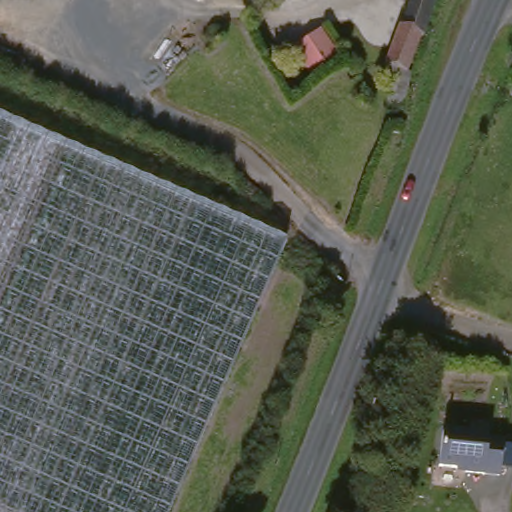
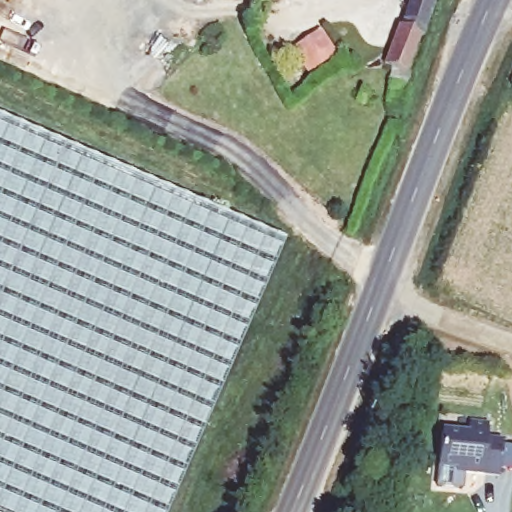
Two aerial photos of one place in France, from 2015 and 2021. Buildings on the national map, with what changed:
unchanged [(260,0),(272,0),(263,5),(260,0)]
unchanged [(390,75),(383,71),(405,0),(433,0),(420,45),(415,44),(405,80),(409,81),(397,140),(383,128),(380,124),(390,75)]
unchanged [(313,78),(296,50),(328,31),(345,61),(313,78)]
unchanged [(285,241),(167,512),(0,512),(0,118),(285,241)]
unchanged [(500,476),(465,476),(465,473),(438,473),(438,439),(441,436),(465,436),(465,425),(485,425),(485,441),(500,441),(500,446),(512,446),(512,472),(500,471),(500,476)]

